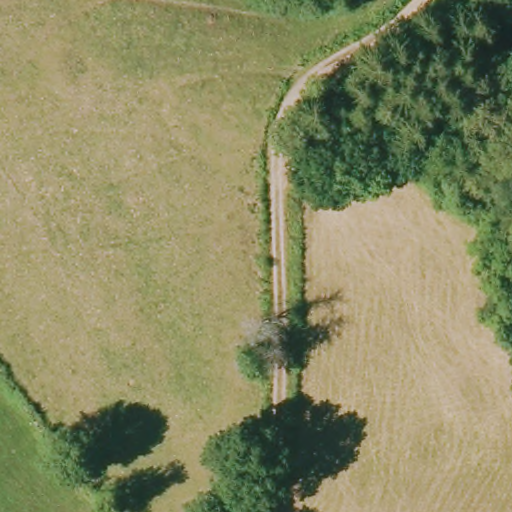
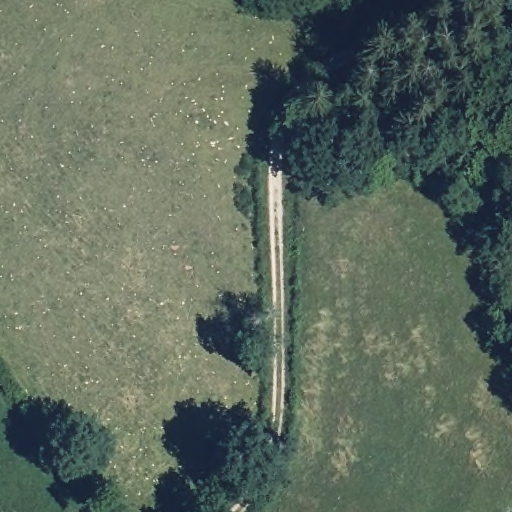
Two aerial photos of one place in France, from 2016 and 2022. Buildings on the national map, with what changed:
unchanged [(512,285),(512,294),(508,291),(512,285)]

